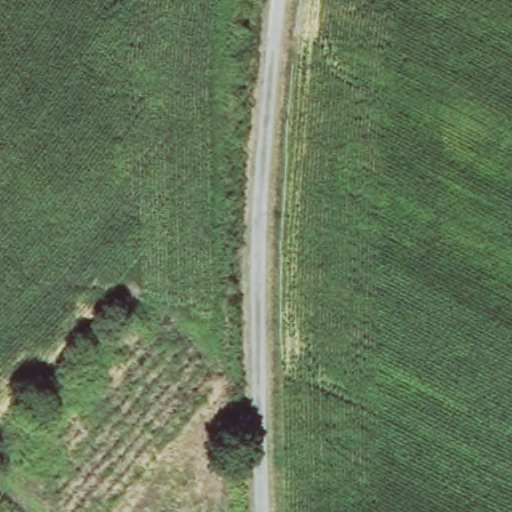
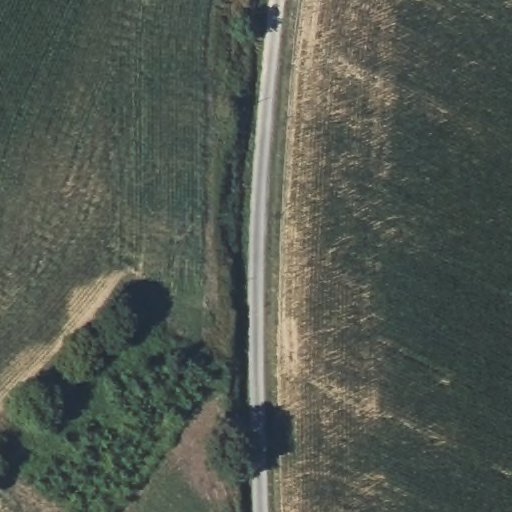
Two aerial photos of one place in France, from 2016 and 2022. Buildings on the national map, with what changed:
[]

